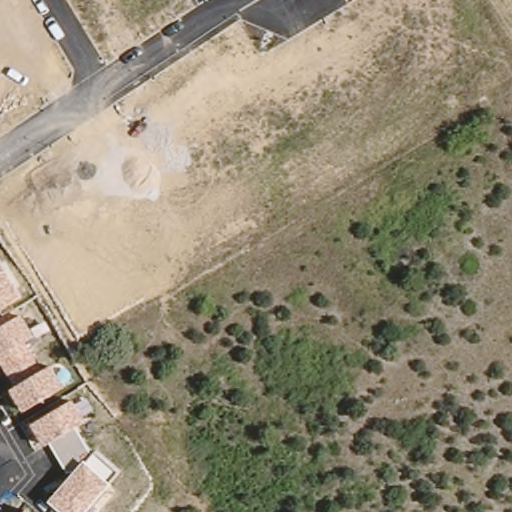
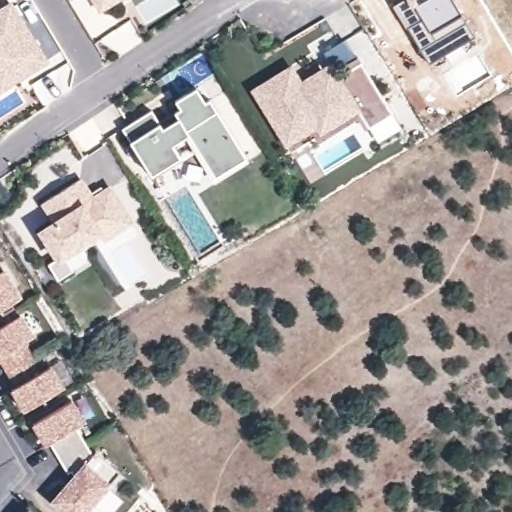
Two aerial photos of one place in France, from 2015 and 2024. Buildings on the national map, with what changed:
new [(91,0),(120,0),(99,14),(91,0)]
new [(475,35),(429,61),(409,27),(407,28),(395,8),(407,0),(455,0),(465,17),(475,35)]
new [(11,1),(50,62),(0,92),(0,8),(11,1)]
new [(297,79),(329,59),(326,61),(319,50),(340,37),(352,59),(335,70),(352,59),(384,110),(367,121),(355,102),(323,121),(317,111),(287,129),(258,82),(288,64),(297,79)]
new [(208,172),(206,170),(180,127),(164,137),(172,150),(148,164),(142,167),(116,125),(121,121),(145,106),(157,124),(172,114),(168,107),(174,104),(169,96),(190,83),(199,97),(203,95),(237,150),(240,154),(208,172)]
new [(92,191),(104,186),(106,188),(111,184),(137,222),(106,243),(101,236),(68,258),(75,271),(58,282),(47,264),(54,260),(36,231),(52,222),(40,202),(84,177),(92,191)]
unchanged [(4,270),(20,299),(0,311),(0,264),(4,270)]
unchanged [(12,392),(0,370),(0,330),(22,317),(34,339),(24,345),(40,373),(53,367),(65,389),(22,412),(12,392)]
unchanged [(50,502),(69,480),(50,445),(46,447),(33,424),(76,401),(88,423),(76,430),(91,456),(95,452),(120,472),(112,483),(87,512),(61,512),(50,502)]
unchanged [(28,510),(31,512),(26,512),(28,510)]

